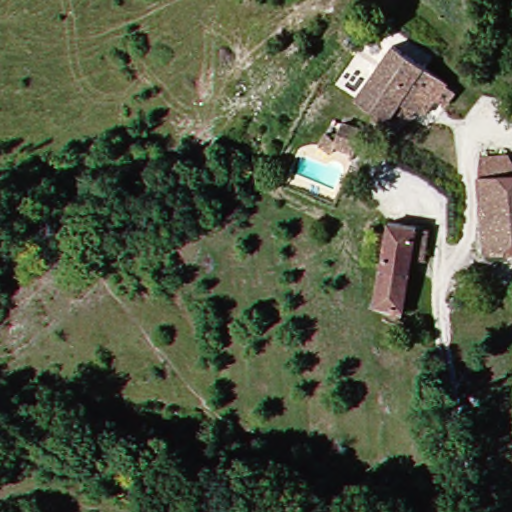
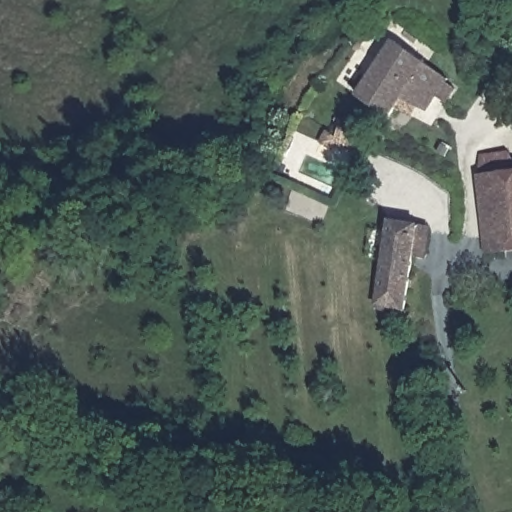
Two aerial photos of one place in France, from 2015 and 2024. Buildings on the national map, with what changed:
unchanged [(458,76),(454,84),(464,90),(455,104),(444,99),(434,113),(412,99),(397,116),(369,95),(402,39),(458,76)]
unchanged [(349,124),(367,126),(379,134),(360,165),(335,147),(349,124)]
unchanged [(492,248),(492,172),(490,150),(512,150),(512,247),(492,248)]
unchanged [(379,313),(396,234),(427,238),(410,321),(379,313)]

